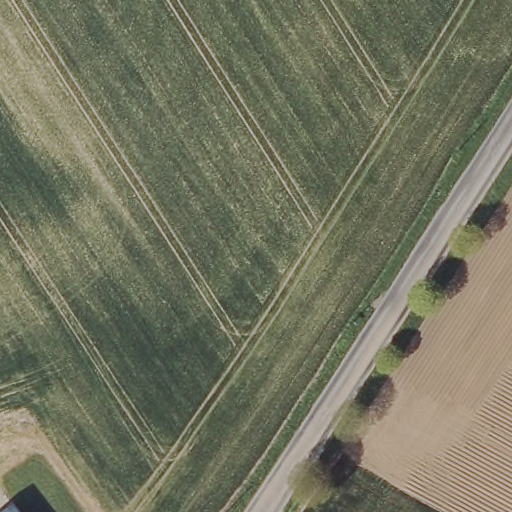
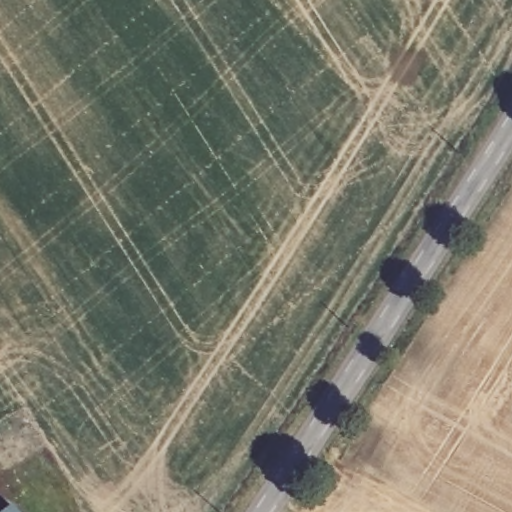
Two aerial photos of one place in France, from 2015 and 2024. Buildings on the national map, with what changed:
unchanged [(15,512),(0,512),(0,511),(9,504),(15,512)]

